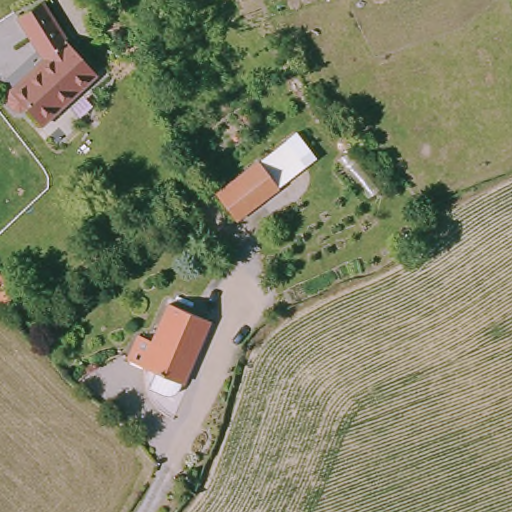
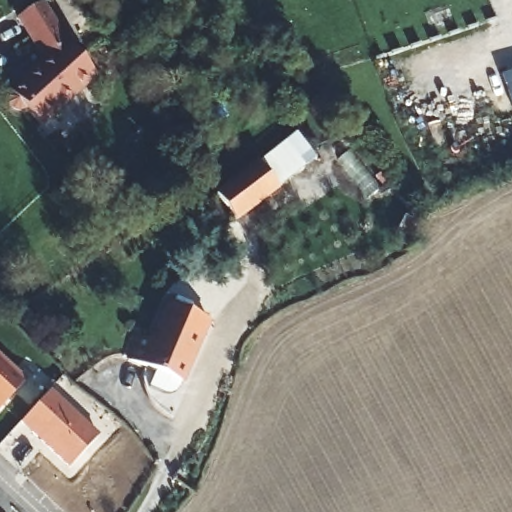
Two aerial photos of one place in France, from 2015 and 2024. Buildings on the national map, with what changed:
unchanged [(45,0),(67,38),(99,72),(43,121),(28,107),(16,106),(10,100),(10,93),(12,88),(45,56),(18,12),(38,0),(45,0)]
new [(433,15),(450,10),(454,22),(438,28),(433,15)]
unchanged [(307,165),(234,222),(213,192),(287,137),(307,165)]
new [(395,237),(405,217),(415,222),(405,242),(395,237)]
new [(0,308),(0,280),(15,296),(0,308)]
unchanged [(155,340),(177,305),(214,330),(177,387),(127,355),(141,332),(155,340)]
new [(23,383),(0,408),(0,363),(23,383)]
new [(19,424),(50,390),(98,435),(68,468),(19,424)]

